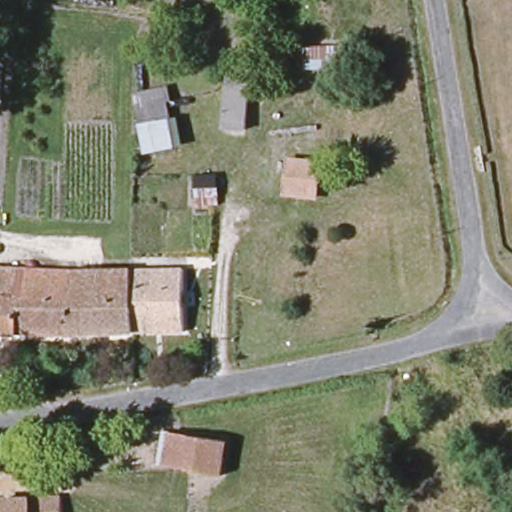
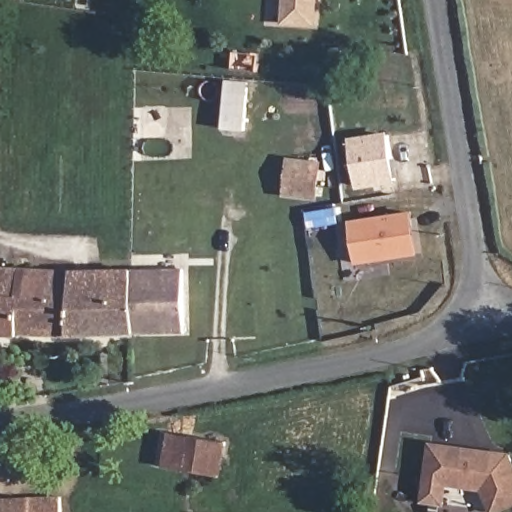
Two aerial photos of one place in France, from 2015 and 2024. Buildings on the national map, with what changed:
new [(315,24),(285,22),(286,0),(316,0),(315,24)]
unchanged [(351,45),(351,69),(305,69),(305,47),(351,45)]
unchanged [(252,84),(252,110),(227,109),(226,83),(252,84)]
demolished [(148,152),(143,125),(139,126),(137,104),(166,98),(174,147),(148,152)]
new [(356,189),(348,138),(388,132),(396,183),(356,189)]
unchanged [(285,192),(288,160),(296,161),(318,162),(315,195),(292,193),(285,192)]
demolished [(198,184),(216,184),(217,205),(198,205),(198,184)]
new [(309,228),(306,211),(337,206),(339,223),(309,228)]
new [(413,211),(419,252),(355,262),(349,220),(413,211)]
unchanged [(69,264),(69,257),(84,256),(84,265),(131,265),(131,332),(19,333),(18,329),(17,264),(69,264)]
unchanged [(17,264),(18,329),(19,333),(0,333),(0,264),(17,264)]
unchanged [(131,265),(183,266),(184,331),(131,332),(131,265)]
unchanged [(227,438),(223,474),(168,465),(173,430),(227,438)]
new [(489,512),(481,492),(449,486),(446,506),(419,502),(428,442),(510,453),(512,457),(512,506),(498,512),(489,512)]
unchanged [(3,512),(3,500),(36,499),(36,512),(3,512)]
unchanged [(61,499),(62,512),(36,512),(36,499),(61,499)]

